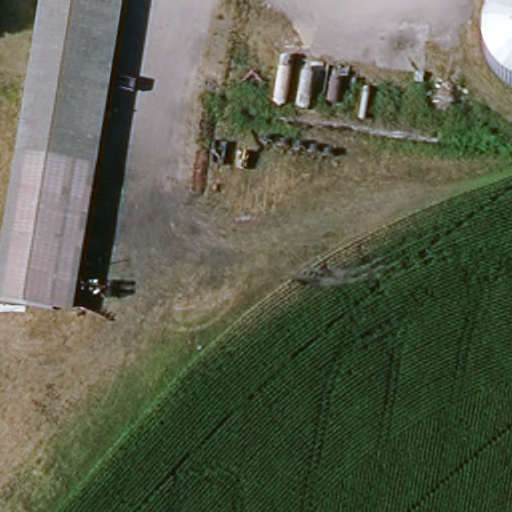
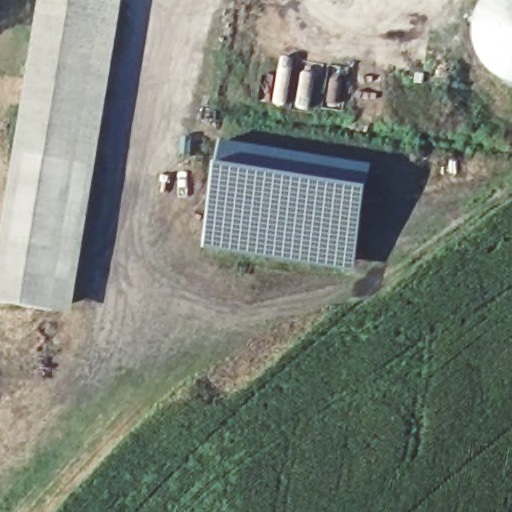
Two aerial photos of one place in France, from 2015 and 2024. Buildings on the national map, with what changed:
unchanged [(115,0),(98,112),(68,303),(10,295),(38,106),(54,0),(115,0)]
unchanged [(499,74),(487,52),(484,37),(490,17),(496,5),(501,0),(512,0),(512,81),(499,74)]
new [(220,141),(294,152),(373,166),(354,271),(204,248),(220,141)]

